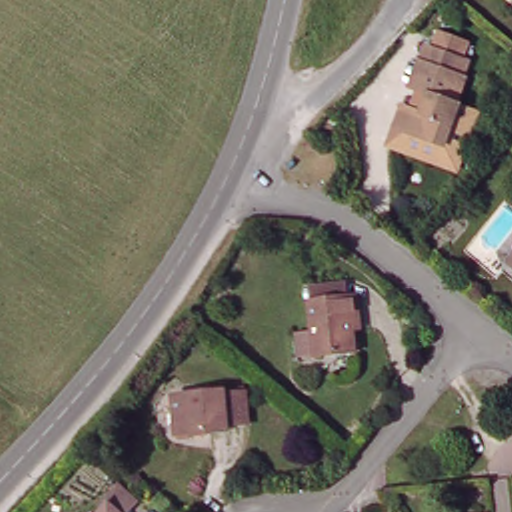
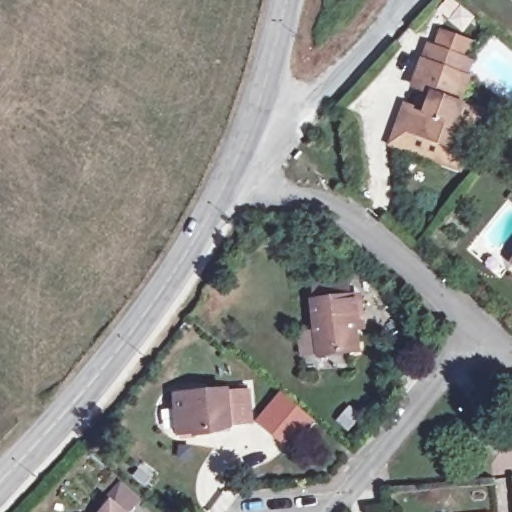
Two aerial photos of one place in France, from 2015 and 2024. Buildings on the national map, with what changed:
unchanged [(405,106),(412,109),(428,115),(435,96),(415,88),(430,47),(472,62),(466,79),(469,80),(460,104),(465,106),(450,147),(404,130),(397,127),(405,106)]
unchanged [(366,316),(360,317),(364,352),(325,356),(320,302),(317,286),(357,281),(359,297),(364,297),(366,316)]
unchanged [(213,436),(199,437),(198,435),(181,436),(178,397),(230,392),(249,391),(252,428),(233,430),(219,430),(213,436)]
new [(309,420),(289,444),(260,421),(280,396),(309,420)]
unchanged [(66,511),(93,509),(103,497),(98,493),(114,473),(133,490),(122,504),(124,506),(125,509),(125,512),(66,512),(66,511)]

